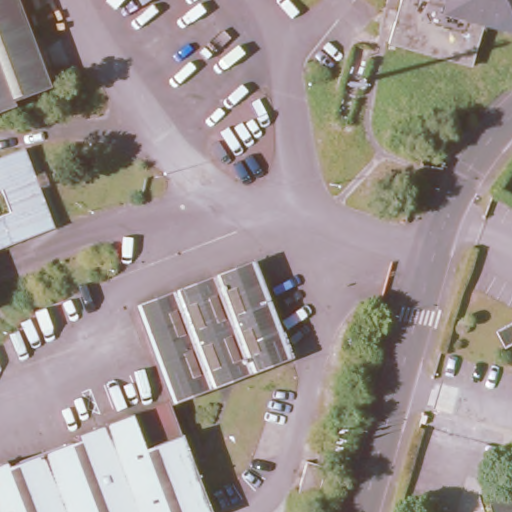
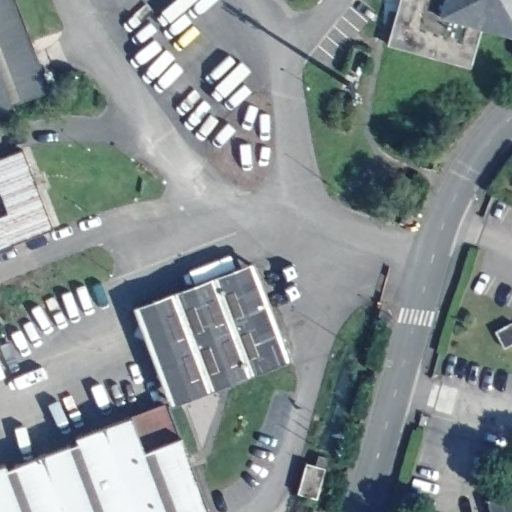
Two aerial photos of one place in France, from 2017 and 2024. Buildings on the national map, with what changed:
unchanged [(17,103),(0,109),(0,0),(18,0),(51,85),(16,98),(17,103)]
unchanged [(471,62),(390,41),(401,0),(512,0),(512,29),(481,21),(471,62)]
unchanged [(52,224),(0,244),(0,152),(23,144),(52,224)]
unchanged [(260,267),(294,356),(171,401),(137,311),(260,267)]
unchanged [(500,329),(512,324),(512,347),(507,349),(500,329)]
unchanged [(184,434),(214,512),(0,512),(0,466),(11,462),(13,466),(83,440),(81,435),(136,414),(149,447),(184,434)]
unchanged [(318,498),(297,493),(304,461),(324,465),(318,498)]
unchanged [(512,496),(512,512),(497,512),(494,502),(512,496)]

